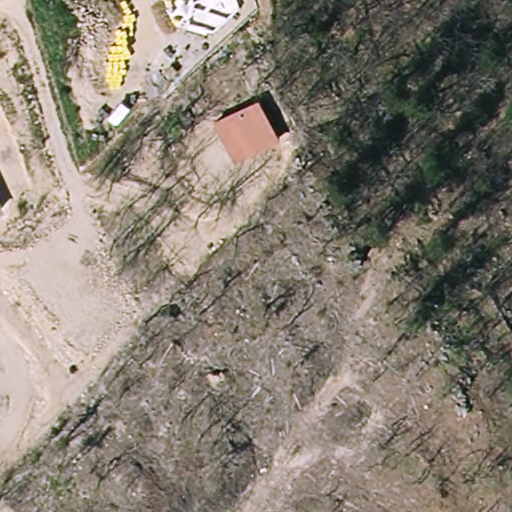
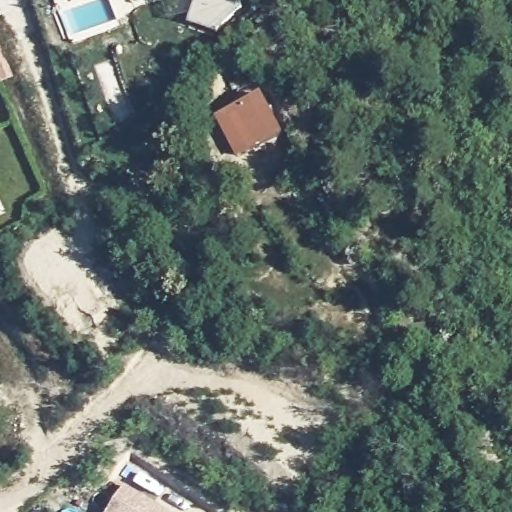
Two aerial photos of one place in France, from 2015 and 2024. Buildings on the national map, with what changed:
unchanged [(241,7),(209,35),(174,22),(166,0),(239,0),(241,7)]
unchanged [(262,94),(282,135),(235,158),(216,118),(262,94)]
unchanged [(0,213),(0,210),(1,212),(0,213)]
new [(108,512),(123,485),(170,512),(108,512)]

